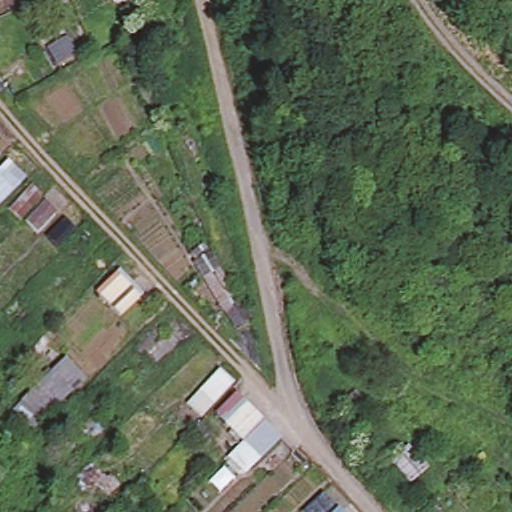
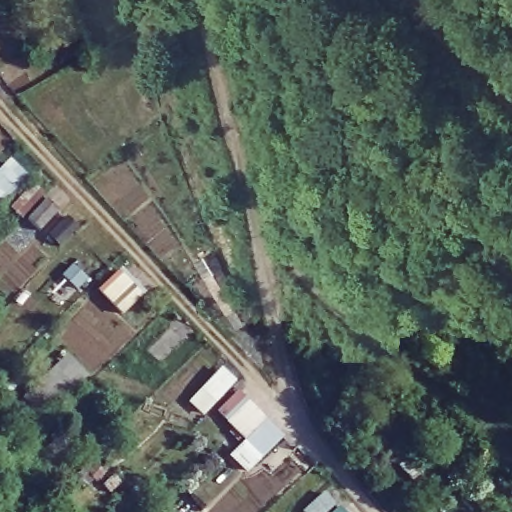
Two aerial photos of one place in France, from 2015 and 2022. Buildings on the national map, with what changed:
unchanged [(0,209),(0,168),(9,159),(29,180),(0,209)]
unchanged [(245,297),(227,310),(193,262),(200,257),(193,249),(205,242),(245,297)]
unchanged [(123,321),(95,294),(119,270),(146,297),(123,321)]
unchanged [(43,423),(20,401),(66,356),(88,378),(43,423)]
unchanged [(246,476),(227,458),(241,444),(216,415),(236,394),(282,439),(246,476)]
unchanged [(323,512),(304,512),(302,510),(324,492),(334,502),(323,512)]

